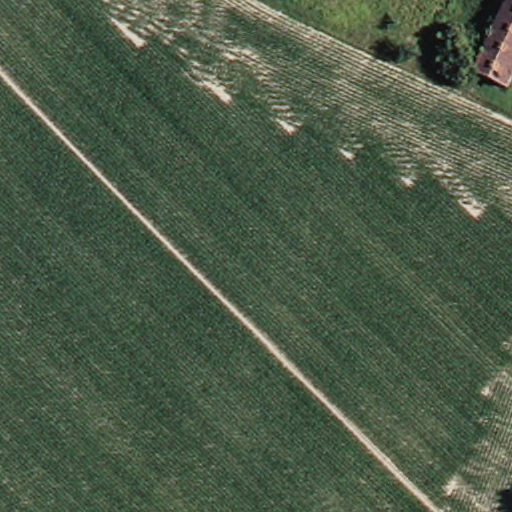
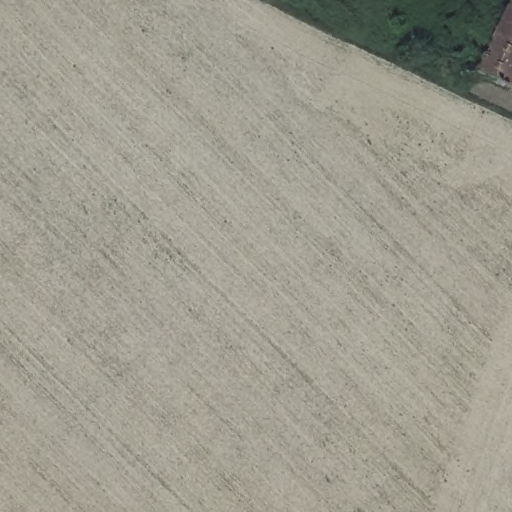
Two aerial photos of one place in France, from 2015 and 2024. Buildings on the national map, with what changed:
unchanged [(512,67),(503,88),(470,73),(492,21),(502,0),(512,0),(512,67)]

